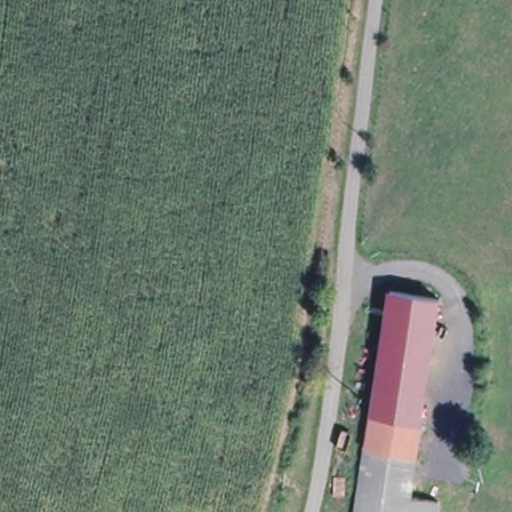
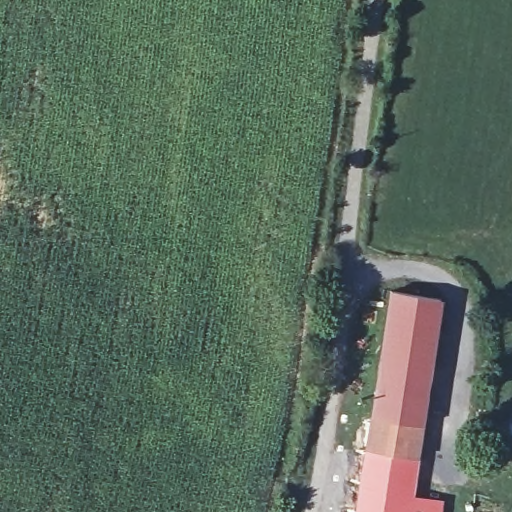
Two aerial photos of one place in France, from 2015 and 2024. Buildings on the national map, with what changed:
unchanged [(378,353),(385,297),(437,303),(431,359),(378,353)]
unchanged [(423,424),(370,417),(378,353),(431,359),(423,424)]
unchanged [(370,417),(423,424),(416,495),(442,498),(441,512),(358,512),(370,417)]

